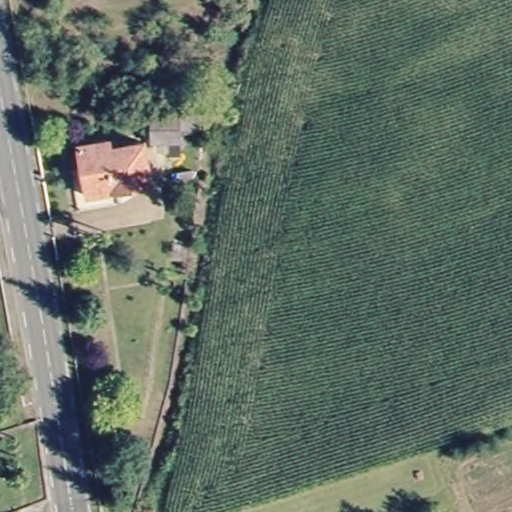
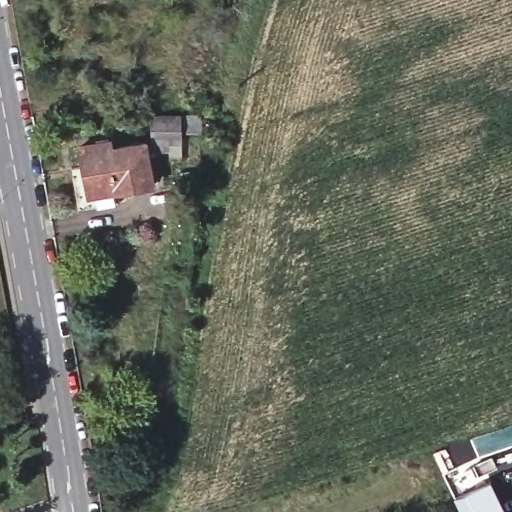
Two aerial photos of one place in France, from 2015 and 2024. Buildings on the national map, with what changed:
unchanged [(149,113),(201,113),(199,132),(181,133),(181,139),(150,140),(149,113)]
unchanged [(77,148),(110,139),(113,151),(144,143),(154,185),(91,202),(77,148)]
new [(507,512),(460,512),(454,498),(491,478),(507,512)]
unchanged [(157,501),(153,512),(147,512),(137,508),(140,496),(157,501)]

